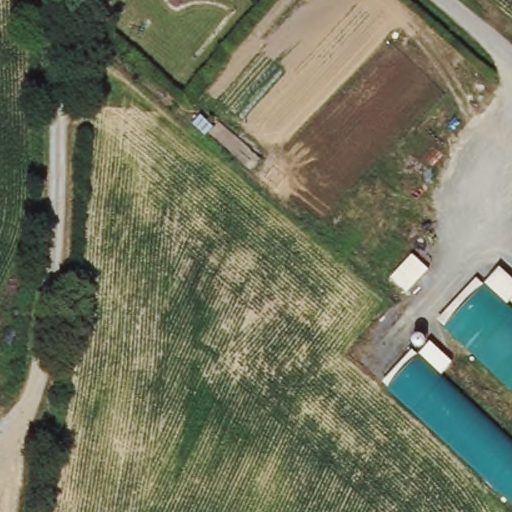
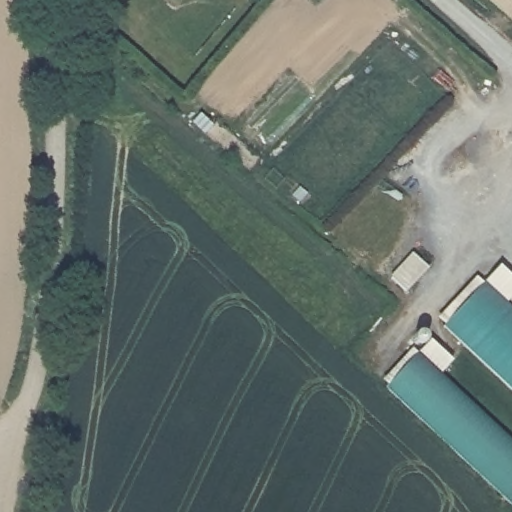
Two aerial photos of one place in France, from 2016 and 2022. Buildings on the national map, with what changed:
unchanged [(512,309),(512,389),(446,326),(487,286),(512,309)]
unchanged [(407,340),(417,328),(452,361),(441,375),(512,441),(512,505),(381,381),(413,346),(407,340)]

